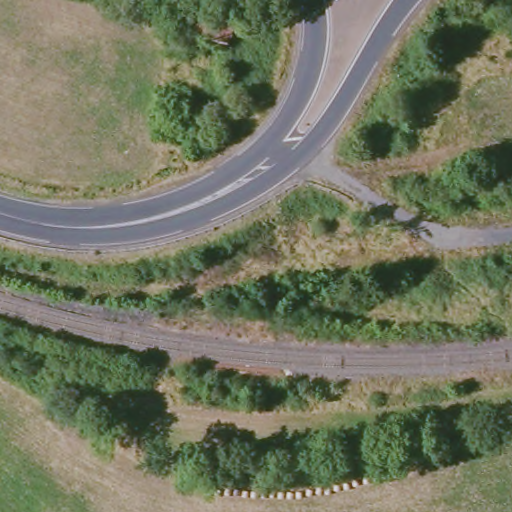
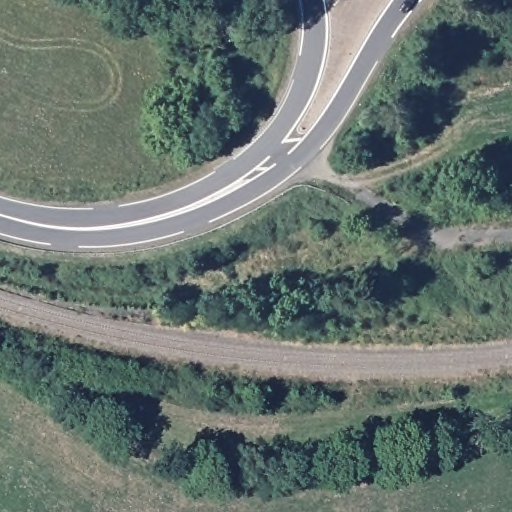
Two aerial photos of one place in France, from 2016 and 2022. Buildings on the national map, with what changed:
unchanged [(195,48),(171,32),(175,10),(210,19),(210,12),(249,15),(247,23),(261,25),(260,41),(247,41),(247,51),(195,48)]

